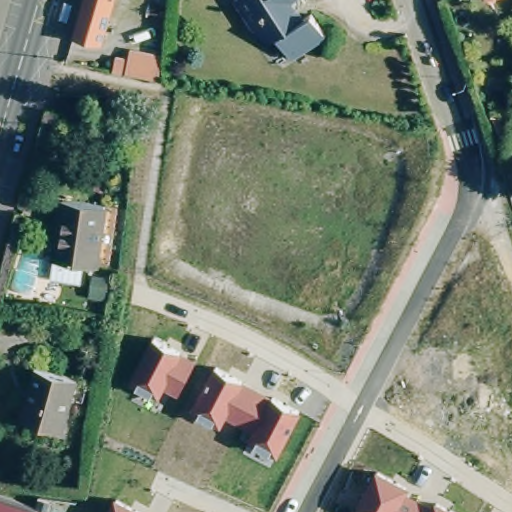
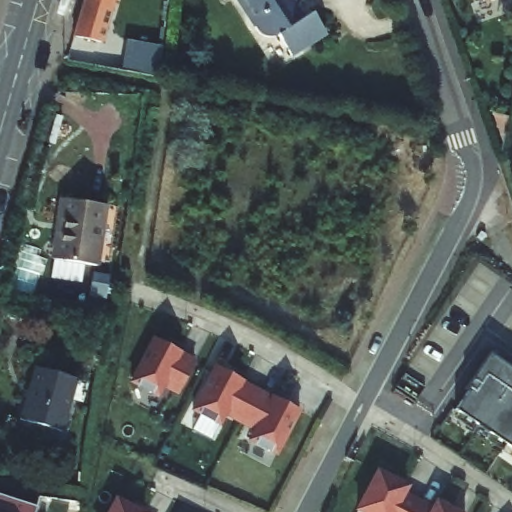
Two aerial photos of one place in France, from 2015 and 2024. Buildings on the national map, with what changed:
unchanged [(74,36),(84,0),(114,0),(102,42),(74,36)]
unchanged [(273,36),(271,37),(269,37),(266,37),(262,37),(260,37),(257,36),(255,35),(252,32),(250,28),(232,0),(295,0),(295,2),(295,5),(292,7),(299,17),(307,12),(321,34),(287,57),(273,36)]
unchanged [(115,59),(128,61),(130,51),(160,57),(159,79),(114,71),(115,59)]
unchanged [(90,262),(79,260),(76,277),(46,272),(57,194),(100,200),(90,262)]
unchanged [(196,360),(179,396),(162,389),(159,397),(132,385),(152,337),(196,360)]
new [(466,390),(462,387),(487,351),(512,368),(512,447),(454,409),(466,390)]
unchanged [(303,408),(276,456),(248,442),(253,432),(227,417),(219,428),(190,413),(215,365),(303,408)]
unchanged [(77,378),(62,432),(20,420),(35,367),(77,378)]
unchanged [(410,485),(405,493),(431,506),(435,497),(462,512),(356,512),(352,510),(376,467),(410,485)]
unchanged [(34,512),(0,512),(0,495),(36,506),(34,512)]
unchanged [(149,512),(106,512),(115,495),(149,512)]

